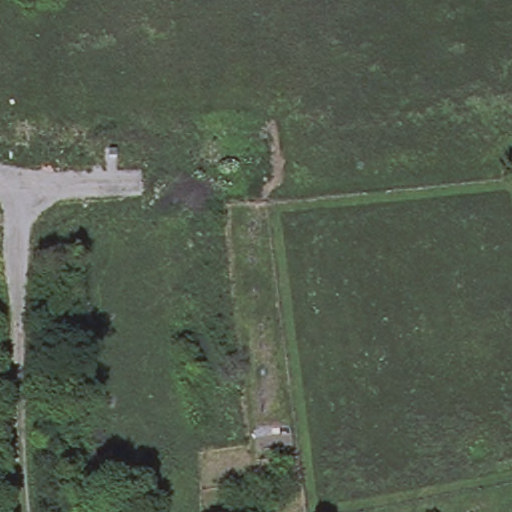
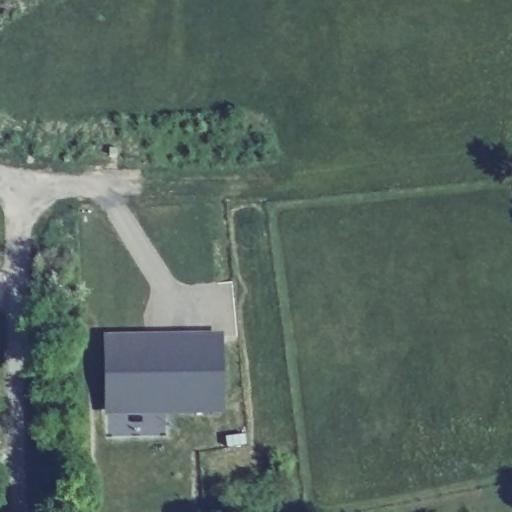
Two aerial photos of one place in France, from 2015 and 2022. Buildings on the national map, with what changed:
new [(225,413),(167,414),(167,436),(106,437),(106,415),(103,332),(223,331),(225,413)]

